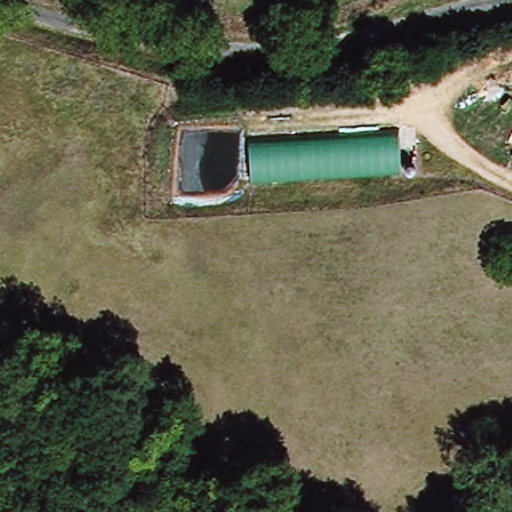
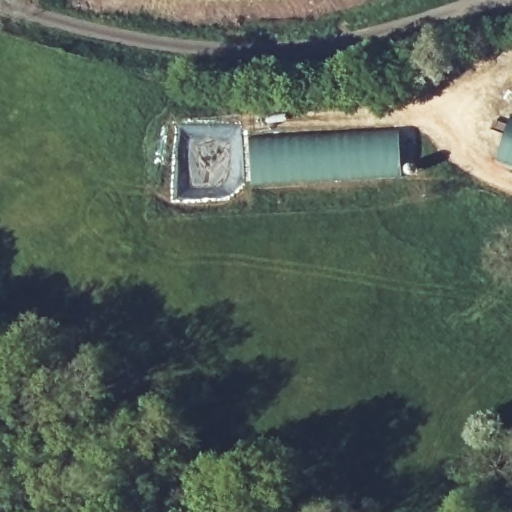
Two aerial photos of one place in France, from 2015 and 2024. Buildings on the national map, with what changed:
new [(498,157),(511,115),(512,116),(512,162),(498,157)]
unchanged [(399,135),(400,181),(247,186),(247,140),(399,135)]

